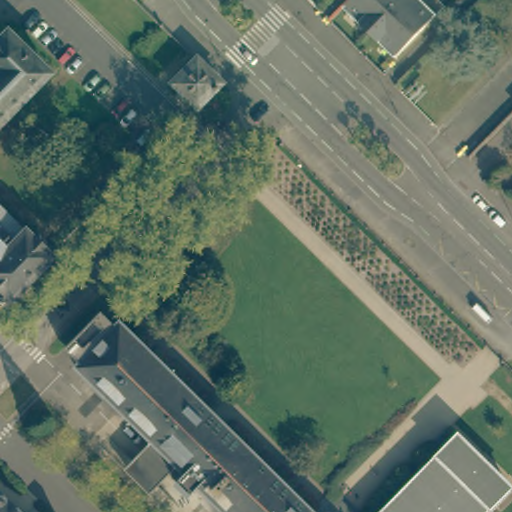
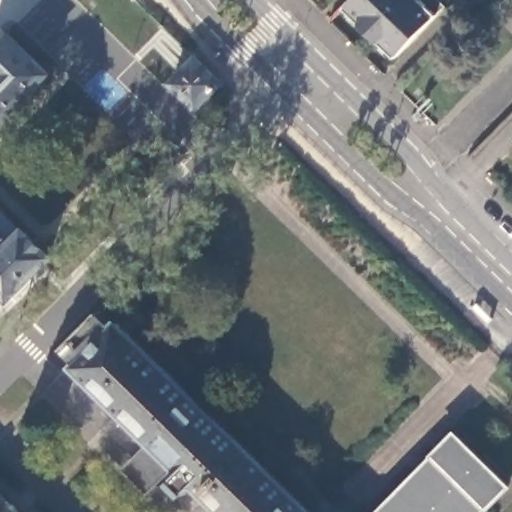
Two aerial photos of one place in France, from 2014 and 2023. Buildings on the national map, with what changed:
unchanged [(445,7),(395,59),(344,9),(351,1),(352,0),(438,0),(445,7)]
unchanged [(0,113),(0,31),(1,30),(43,69),(0,113)]
unchanged [(196,108),(171,84),(196,59),(221,84),(196,108)]
unchanged [(45,252),(6,292),(0,286),(0,210),(19,228),(20,227),(45,252)]
unchanged [(187,488),(172,474),(181,465),(175,460),(150,435),(75,361),(117,318),(212,412),(315,512),(229,512),(195,479),(187,488)]
unchanged [(435,450),(455,429),(508,482),(488,503),(486,502),(476,512),(375,512),(435,451),(435,450)]
unchanged [(175,460),(149,488),(123,463),(150,435),(175,460)]
unchanged [(0,512),(0,500),(12,512),(0,512)]

